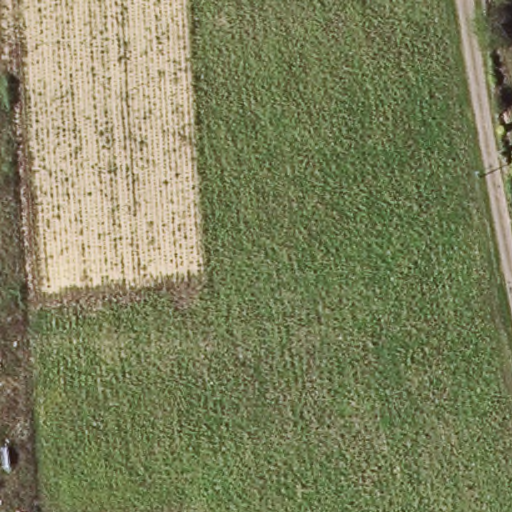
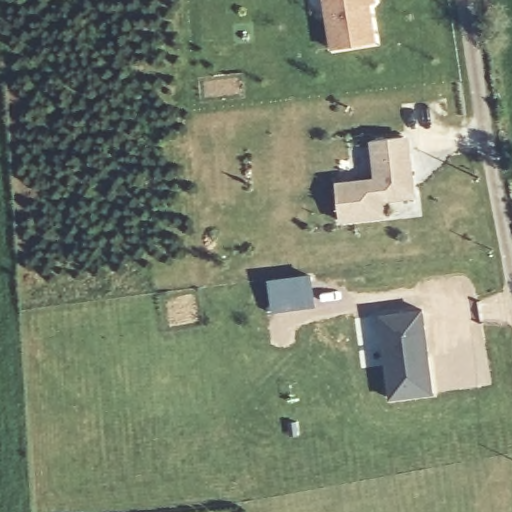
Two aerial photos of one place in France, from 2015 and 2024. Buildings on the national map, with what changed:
new [(368,2),(374,40),(333,47),(324,0),(373,0),(374,1),(368,2)]
new [(377,179),(373,141),(406,138),(408,155),(412,155),(413,163),(409,167),(410,183),(414,187),(416,198),(383,201),(384,216),(341,221),(337,183),(377,179)]
new [(424,311),(434,395),(392,401),(382,316),(424,311)]

